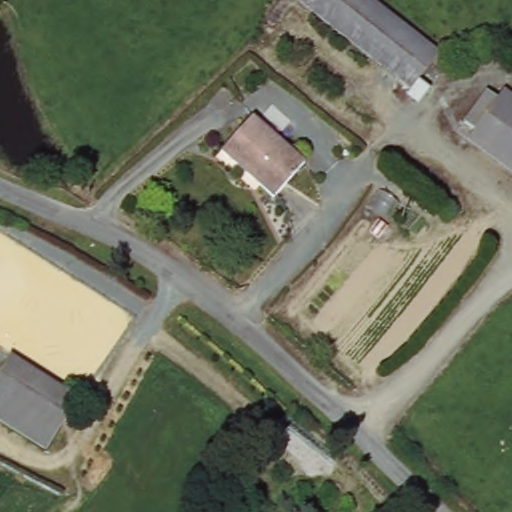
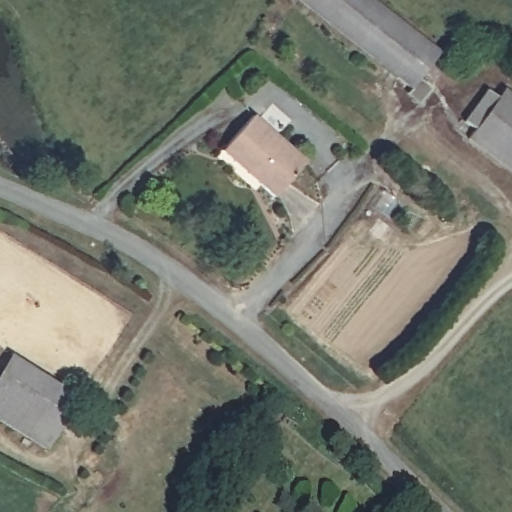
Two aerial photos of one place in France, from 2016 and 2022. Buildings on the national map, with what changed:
unchanged [(374,0),(439,51),(408,88),(398,83),(389,91),(372,78),(378,69),(296,0),(374,0)]
unchanged [(512,98),(512,174),(465,143),(503,91),(512,98)]
unchanged [(300,159),(272,196),(218,155),(246,116),(300,159)]
unchanged [(84,397),(53,455),(0,427),(0,378),(9,361),(65,388),(84,397)]

